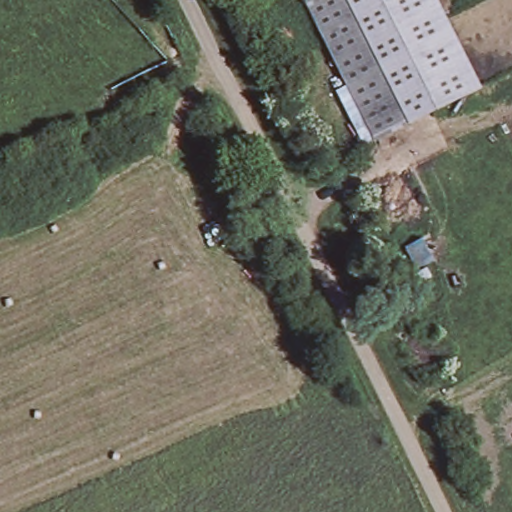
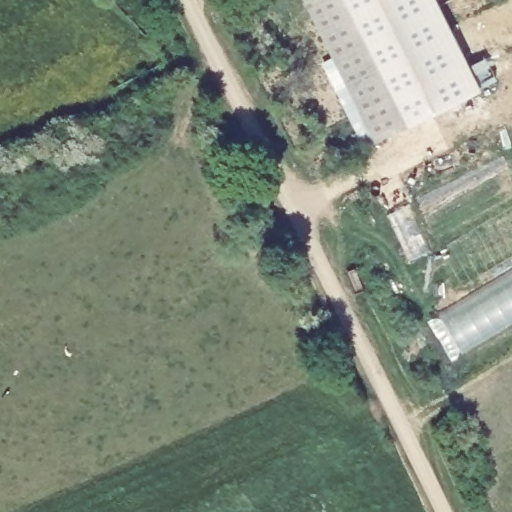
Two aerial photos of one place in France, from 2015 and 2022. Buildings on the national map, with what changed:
unchanged [(485,80),(386,135),(315,0),(442,0),(485,80)]
new [(442,320),(512,277),(512,317),(460,348),(442,320)]

